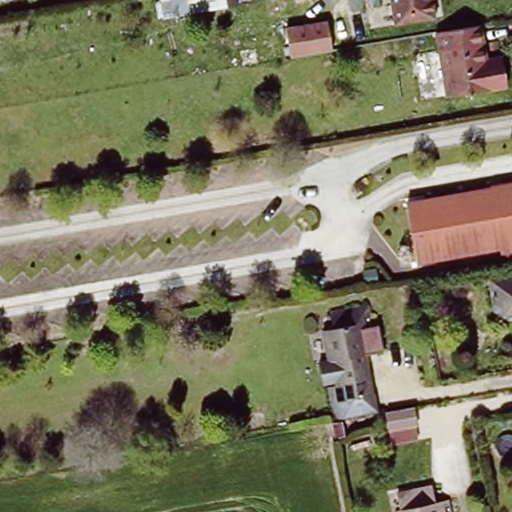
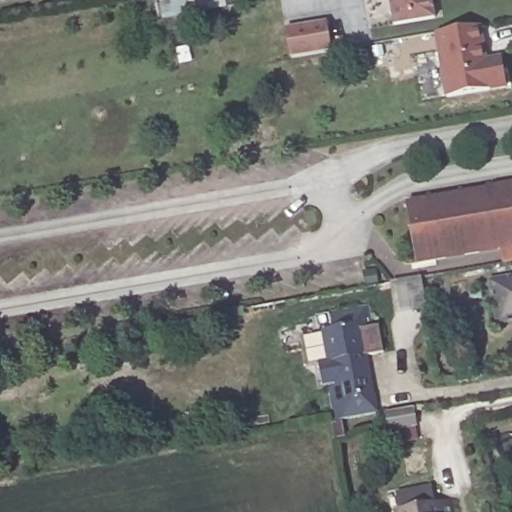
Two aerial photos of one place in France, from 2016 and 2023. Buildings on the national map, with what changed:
unchanged [(166,15),(163,0),(238,0),(238,1),(166,15)]
unchanged [(388,0),(431,0),(433,20),(392,27),(388,0)]
unchanged [(326,21),(332,50),(290,57),(284,26),(326,21)]
unchanged [(503,65),(506,85),(447,96),(436,30),(479,23),(485,55),(502,55),(503,65)]
unchanged [(418,258),(409,201),(512,184),(512,259),(505,260),(502,245),(418,258)]
unchanged [(497,278),(512,277),(512,319),(502,320),(497,278)]
unchanged [(331,385),(324,384),(321,355),(331,352),(331,336),(368,330),(374,377),(364,377),(369,418),(339,422),(334,423),(327,403),(333,404),(331,385)]
unchanged [(400,511),(398,495),(434,488),(437,504),(449,502),(451,512),(399,512),(400,511)]

